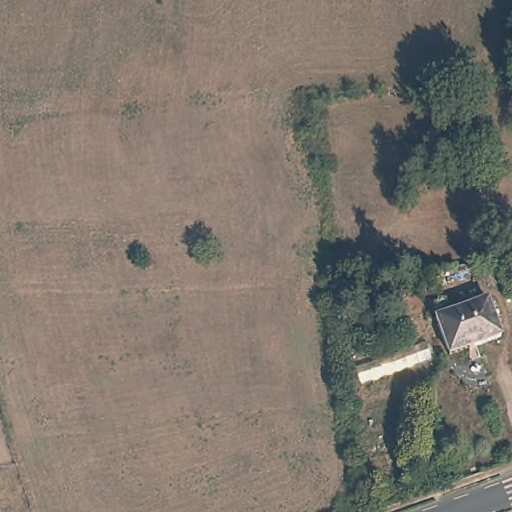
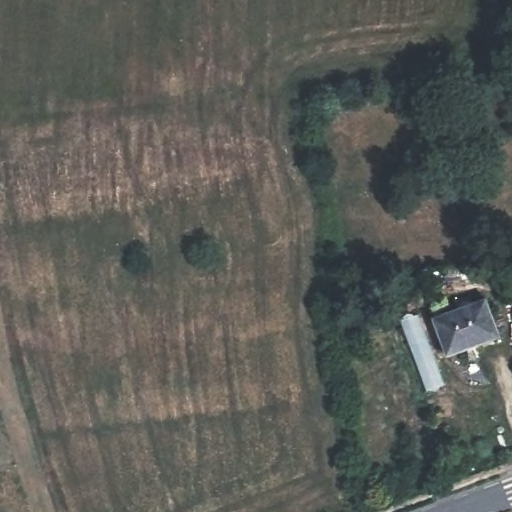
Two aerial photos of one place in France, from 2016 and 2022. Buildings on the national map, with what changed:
unchanged [(447,352),(432,314),(489,295),(502,332),(447,352)]

